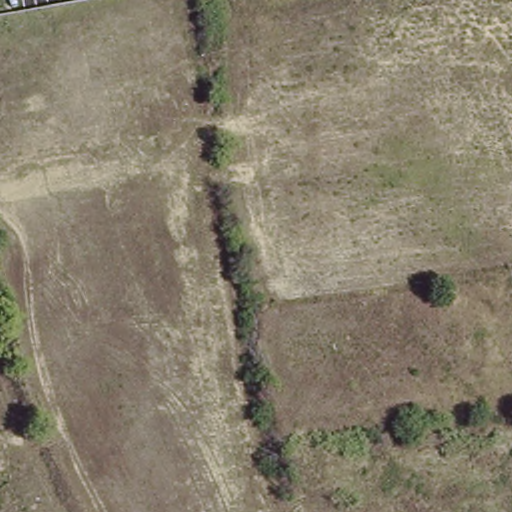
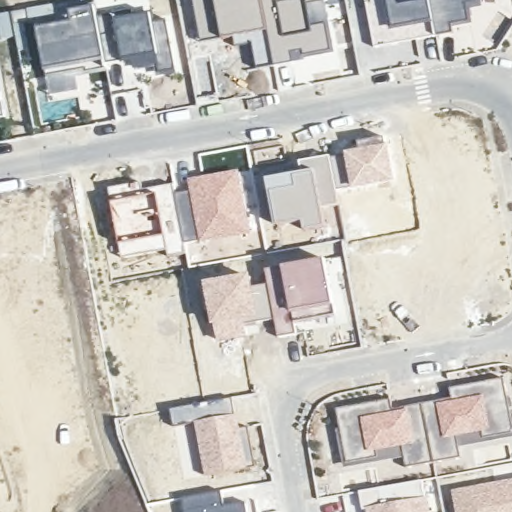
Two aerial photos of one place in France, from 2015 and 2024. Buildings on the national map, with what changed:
new [(336,55),(273,65),(257,67),(252,43),(236,45),(234,37),(221,38),(201,41),(193,0),(327,0),(336,55)]
new [(435,37),(374,49),(364,0),(428,0),(435,37)]
new [(483,7),(470,10),(472,24),(454,28),(454,33),(435,37),(428,0),(482,0),(483,7)]
new [(175,68),(161,70),(161,66),(134,70),(133,60),(122,61),(114,19),(153,13),(155,22),(166,20),(175,68)]
new [(53,24),(96,15),(105,60),(86,64),(88,74),(77,75),(79,90),(49,95),(36,27),(53,24)]
new [(0,118),(0,92),(4,117),(0,118)]
new [(388,142),(395,182),(351,189),(344,151),(388,142)]
new [(301,171),(299,160),(331,155),(339,205),(332,207),(324,210),(327,225),(304,231),(302,223),(278,227),(266,178),(301,171)]
new [(191,191),(188,180),(239,170),(251,233),(201,243),(200,240),(183,242),(177,211),(173,195),(191,191)]
new [(139,182),(141,190),(171,184),(173,195),(177,211),(184,252),(167,255),(166,250),(120,257),(107,187),(139,182)]
new [(254,287),(268,284),(266,270),(325,258),(336,315),(294,322),(297,332),(278,337),(274,320),(260,322),(246,326),(248,335),(218,342),(203,282),(251,273),(254,287)]
new [(501,378),(512,430),(492,431),(484,391),(452,397),(449,387),(501,378)]
new [(452,397),(484,391),(492,431),(456,437),(442,440),(434,401),(452,397)]
new [(231,397),(235,412),(194,421),(173,426),(170,409),(231,397)]
new [(416,442),(409,406),(434,401),(442,440),(456,437),(459,455),(404,465),(401,446),(416,442)]
new [(383,402),(384,405),(388,405),(388,410),(359,415),(367,456),(344,461),(335,408),(383,402)]
new [(388,410),(409,406),(416,442),(401,446),(372,451),(373,455),(367,456),(359,415),(388,410)]
new [(235,412),(238,423),(249,467),(204,477),(194,421),(235,412)]
new [(454,512),(450,490),(512,478),(512,512),(454,512)]
new [(421,480),(423,495),(393,500),(363,507),(361,507),(358,490),(421,480)]
new [(223,505),(244,502),(246,512),(184,512),(181,499),(219,492),(223,505)]
new [(423,495),(426,495),(429,512),(364,512),(363,507),(393,500),(423,495)]

